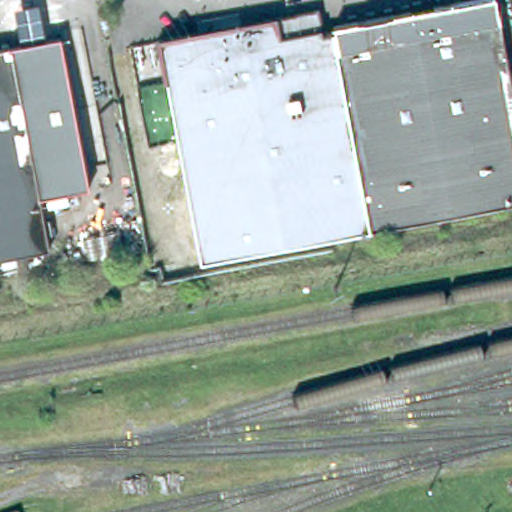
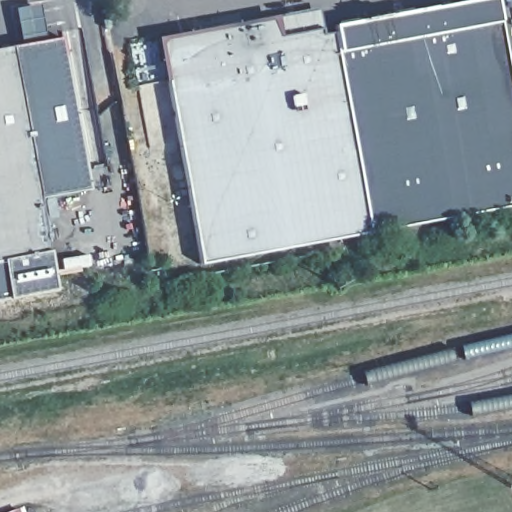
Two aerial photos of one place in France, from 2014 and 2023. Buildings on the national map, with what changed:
unchanged [(336,52),(338,52),(333,27),(473,0),(495,0),(512,91),(512,206),(397,228),(370,233),(199,265),(176,143),(165,82),(163,83),(162,81),(164,80),(157,40),(271,19),(316,11),(319,29),(321,35),(332,33),(336,52)]
unchanged [(54,38),(86,190),(36,200),(46,252),(0,260),(0,48),(54,38)]
new [(56,289),(0,300),(0,260),(46,252),(56,289)]
unchanged [(16,512),(8,512),(15,510),(16,512)]

